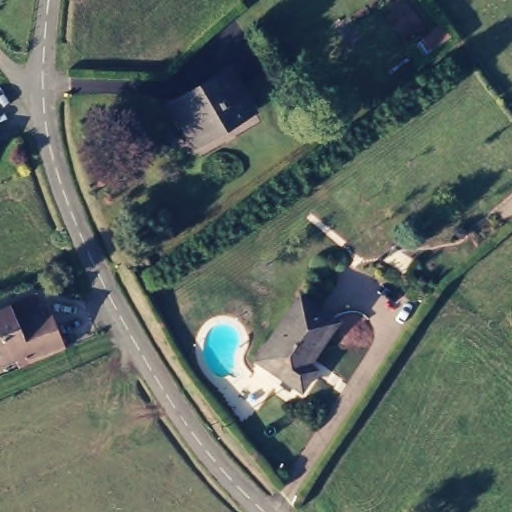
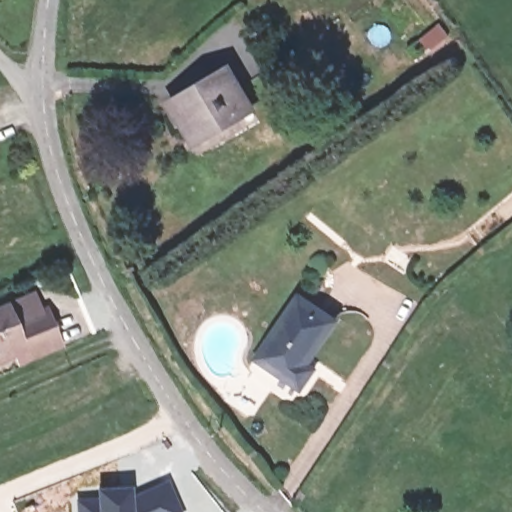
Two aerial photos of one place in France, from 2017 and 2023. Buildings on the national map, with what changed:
unchanged [(182,101),(230,67),(255,101),(207,135),(182,101)]
unchanged [(306,355),(317,361),(300,385),(255,352),(300,291),(335,315),(306,355)]
unchanged [(2,306),(8,320),(40,308),(57,347),(23,359),(15,343),(0,349),(0,307),(2,306)]
new [(102,491),(133,490),(134,502),(144,501),(144,495),(172,486),(181,512),(81,512),(80,500),(102,500),(102,491)]

